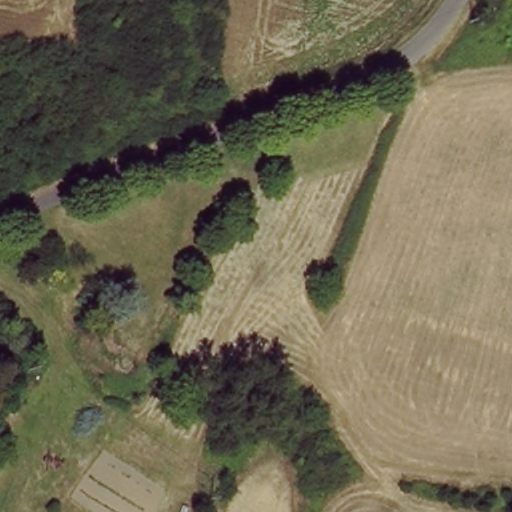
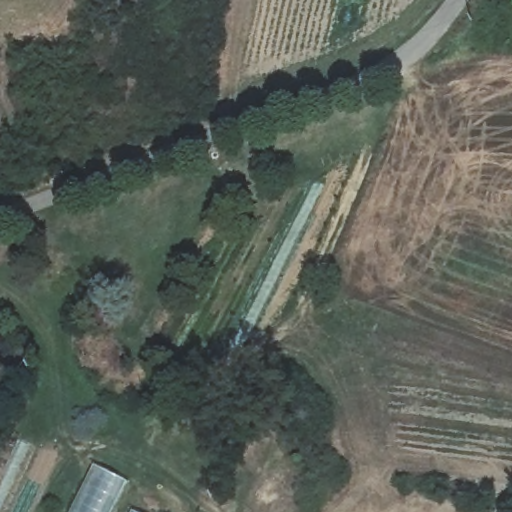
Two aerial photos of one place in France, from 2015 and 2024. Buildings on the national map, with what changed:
new [(92,463),(127,480),(111,512),(68,512),(92,463)]

